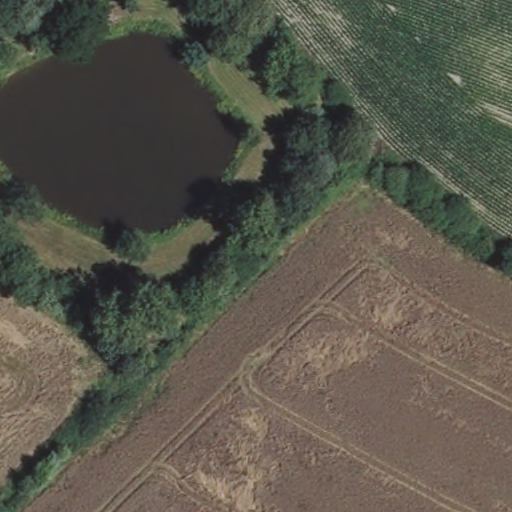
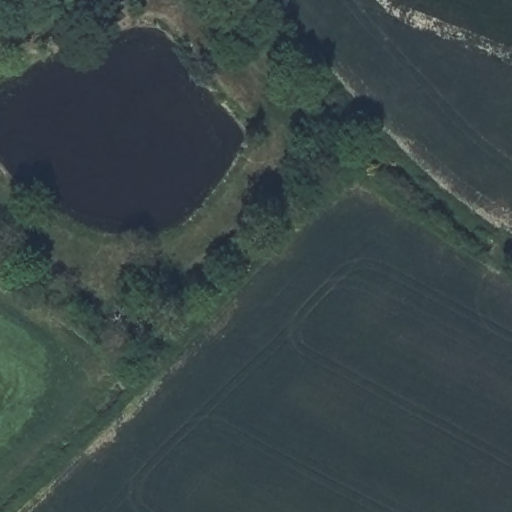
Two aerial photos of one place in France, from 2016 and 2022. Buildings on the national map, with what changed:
[]

